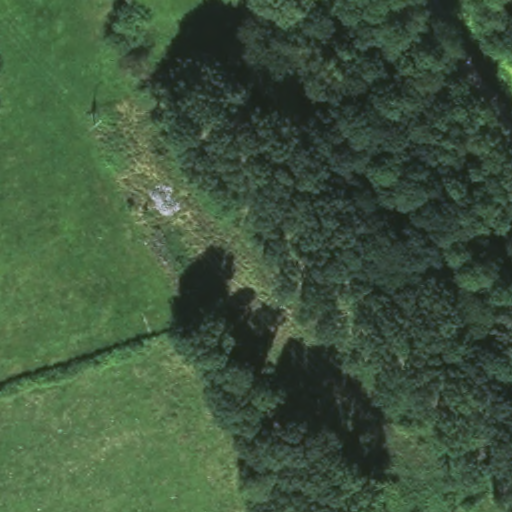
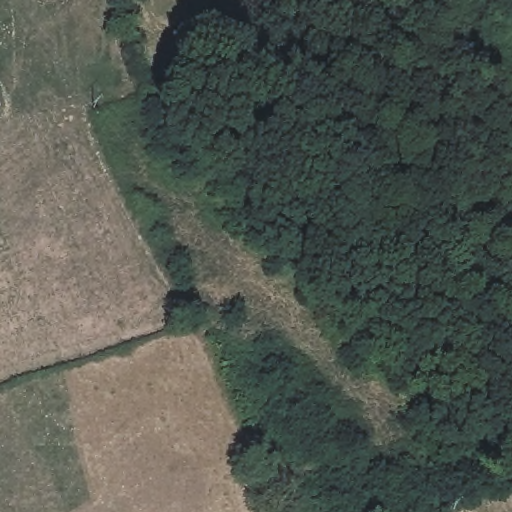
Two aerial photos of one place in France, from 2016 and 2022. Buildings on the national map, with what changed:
[]

